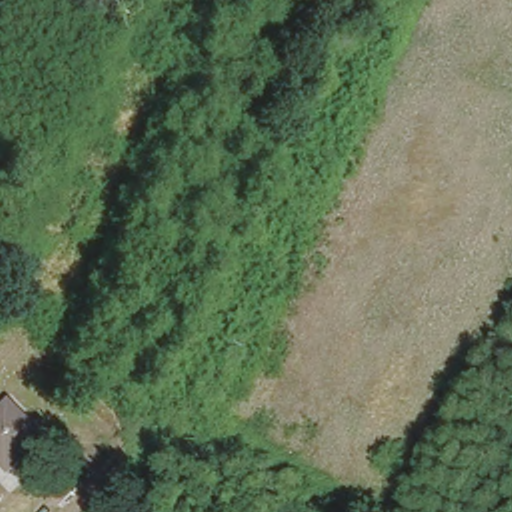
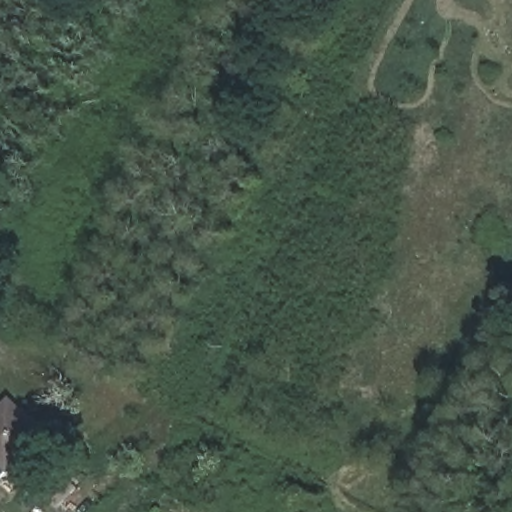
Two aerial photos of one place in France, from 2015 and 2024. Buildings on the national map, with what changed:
unchanged [(8,397),(43,431),(12,463),(0,451),(0,405),(8,397)]
unchanged [(78,461),(89,472),(72,488),(62,478),(78,461)]

